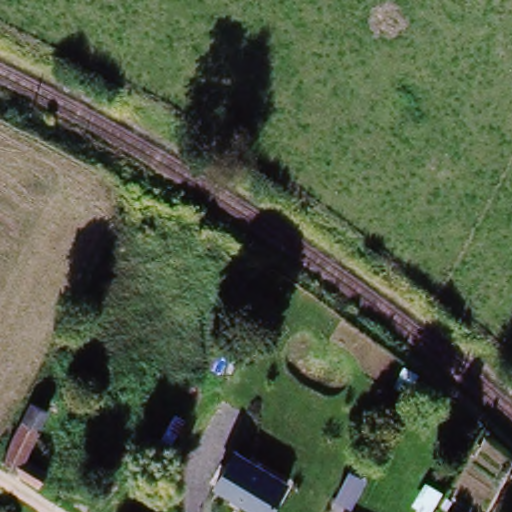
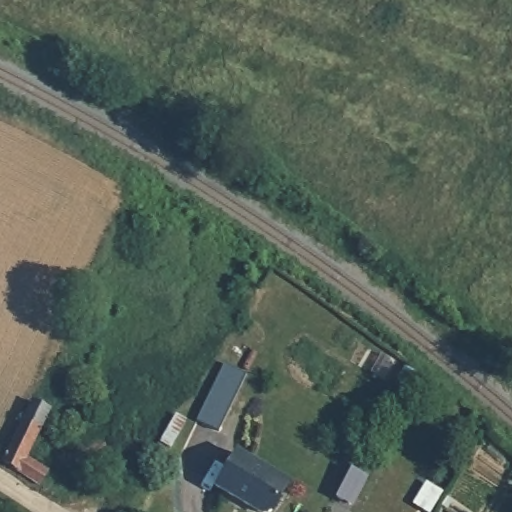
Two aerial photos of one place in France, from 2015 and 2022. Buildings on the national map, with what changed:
new [(248,373),(220,431),(197,420),(224,363),(248,373)]
unchanged [(407,374),(399,390),(386,382),(395,365),(407,374)]
unchanged [(7,459),(26,411),(38,417),(27,435),(36,441),(25,457),(50,473),(45,484),(7,459)]
unchanged [(289,481),(272,512),(255,512),(214,489),(234,449),(289,481)]
unchanged [(340,475),(352,483),(338,511),(325,503),(340,475)]

